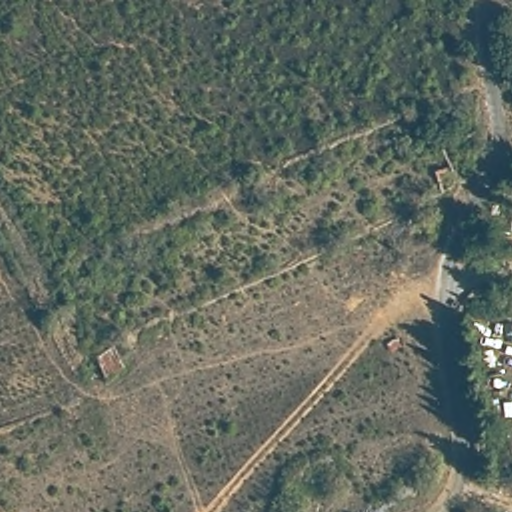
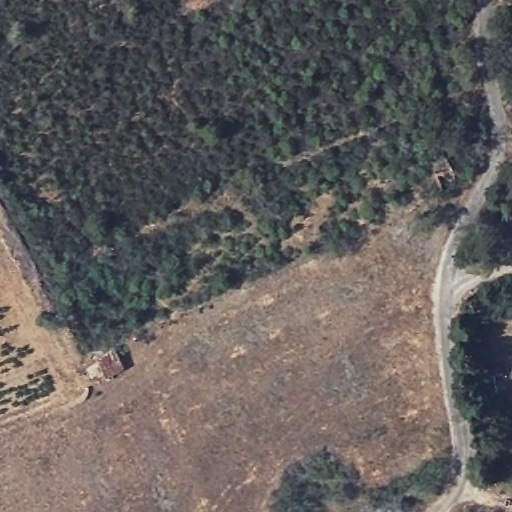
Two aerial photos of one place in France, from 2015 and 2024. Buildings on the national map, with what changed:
unchanged [(92,352),(112,345),(121,370),(101,378),(92,352)]

